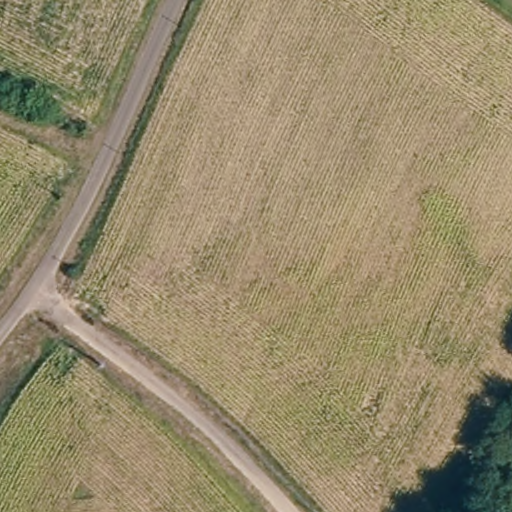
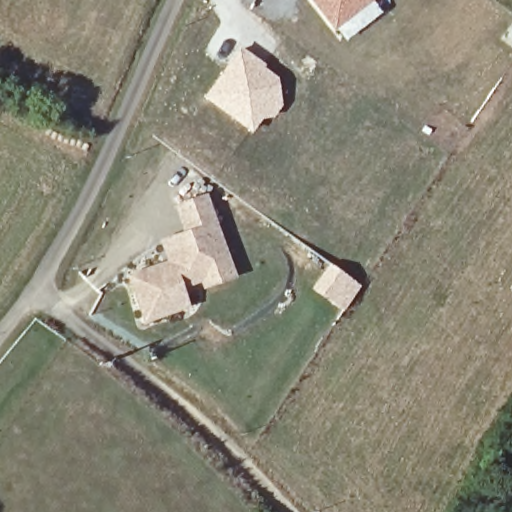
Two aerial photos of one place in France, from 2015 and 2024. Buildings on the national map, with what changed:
new [(311,0),(371,0),(335,30),(311,0)]
new [(240,46),(278,77),(282,106),(272,118),(261,119),(251,134),(201,98),(240,46)]
new [(184,295),(189,307),(144,322),(129,276),(167,262),(161,241),(184,232),(175,206),(207,198),(235,277),(184,295)]

